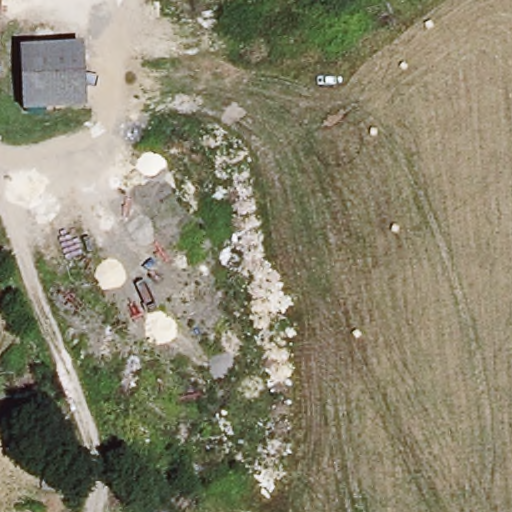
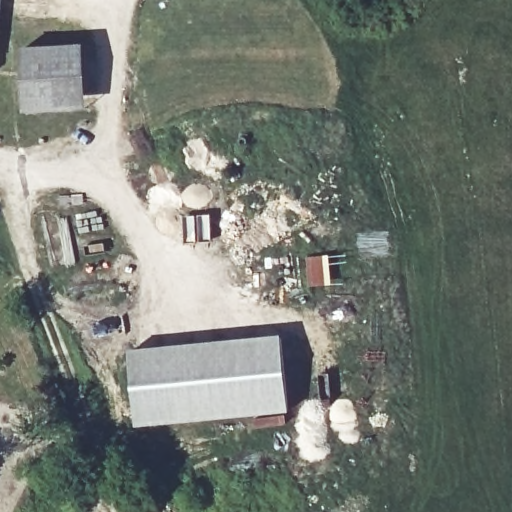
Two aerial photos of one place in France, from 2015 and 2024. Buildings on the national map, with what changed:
unchanged [(0,0),(7,0),(0,58),(0,0)]
unchanged [(82,45),(86,109),(25,113),(21,48),(82,45)]
new [(280,337),(288,411),(138,426),(130,352),(280,337)]

